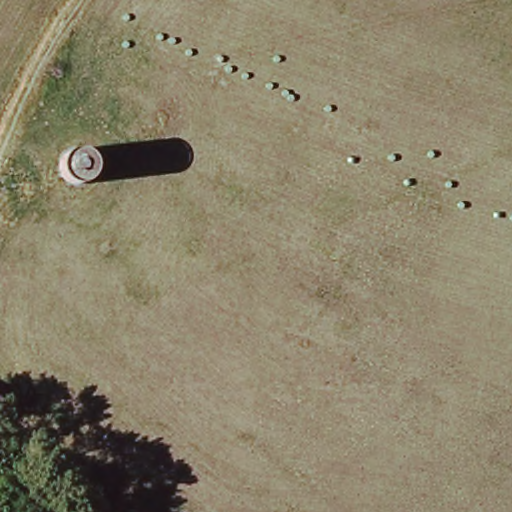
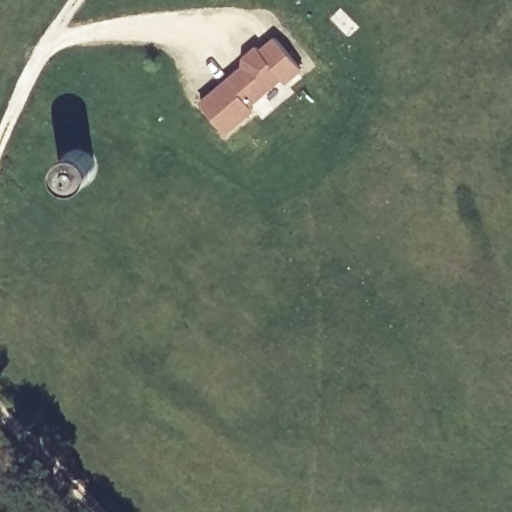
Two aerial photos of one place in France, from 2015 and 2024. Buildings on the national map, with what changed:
new [(305,69),(287,84),(282,80),(252,105),(256,109),(228,133),(199,100),(243,63),(242,57),(258,43),(262,47),(276,35),(305,69)]

